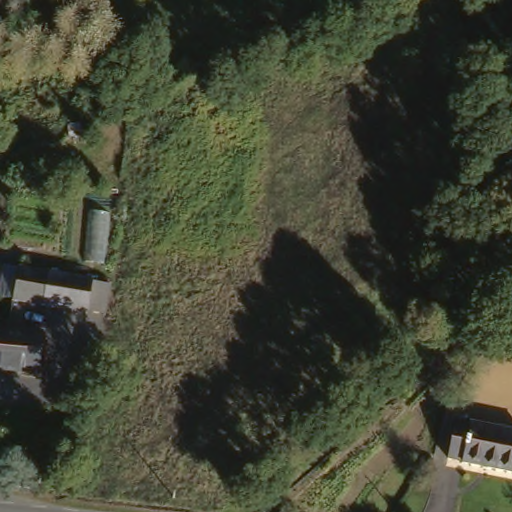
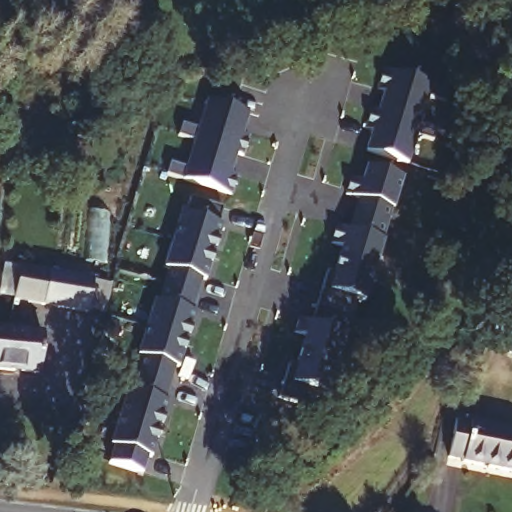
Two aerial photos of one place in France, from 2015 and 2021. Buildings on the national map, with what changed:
new [(371,109),(377,111),(383,93),(376,91),(381,70),(446,90),(443,102),(426,97),(418,123),(434,128),(431,140),(415,135),(406,164),(365,151),(371,131),(364,129),(371,109)]
new [(173,166),(188,170),(196,144),(180,139),(184,126),(199,131),(208,104),(250,116),(243,136),(251,138),(244,158),(238,156),(233,174),(239,176),(233,197),(168,178),(173,166)]
new [(292,361),(299,363),(307,334),(296,331),(301,317),(313,321),(328,270),(334,272),(343,246),(331,242),(336,225),(349,229),(358,199),(346,195),(351,178),(361,181),(366,166),(401,177),(392,209),(391,208),(382,239),(383,239),(366,300),(356,297),(345,332),(346,332),(329,392),(318,389),(313,407),(281,395),(292,361)]
new [(116,448),(113,447),(128,392),(132,393),(142,360),(138,359),(154,304),(158,305),(167,274),(163,272),(179,218),(183,219),(188,203),(221,212),(216,228),(220,230),(204,284),(200,283),(191,315),(195,316),(179,371),(175,370),(166,403),(169,404),(153,459),(149,458),(144,475),(111,466),(116,448)]
unchanged [(18,297),(21,264),(92,271),(88,304),(18,297)]
unchanged [(0,327),(48,330),(46,372),(0,369),(0,327)]
unchanged [(456,456),(461,417),(512,423),(512,463),(456,456)]

